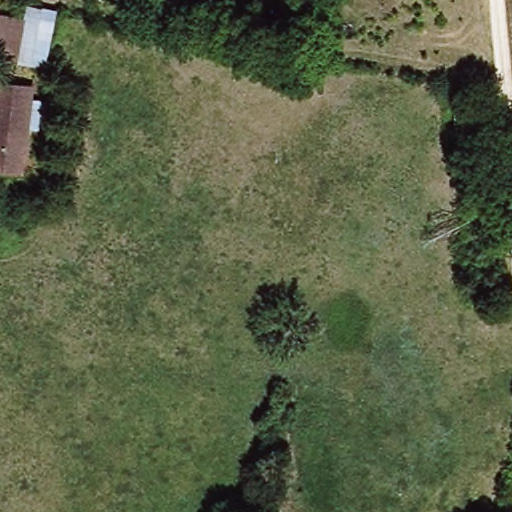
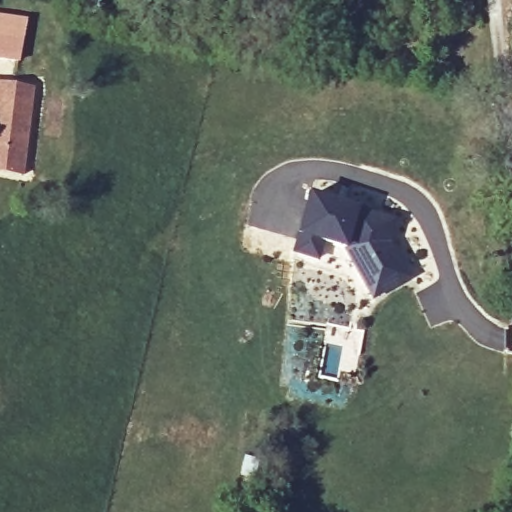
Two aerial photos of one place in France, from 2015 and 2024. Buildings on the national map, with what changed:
unchanged [(22,21),(26,6),(55,12),(43,72),(0,64),(0,18),(22,21)]
unchanged [(28,90),(14,179),(0,177),(0,87),(11,88),(28,90)]
new [(308,192),(404,219),(404,233),(424,270),(372,301),(344,252),(324,247),(318,264),(290,256),(308,192)]

